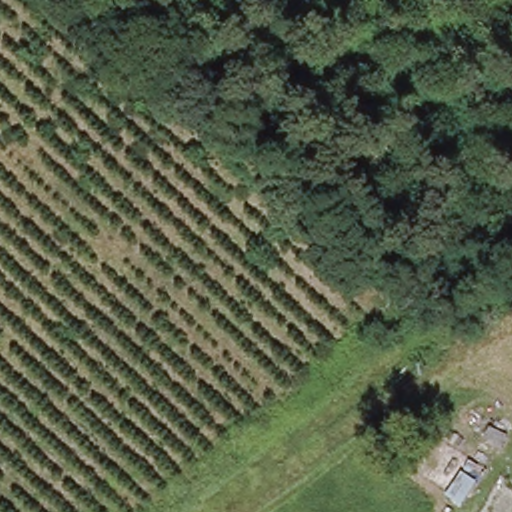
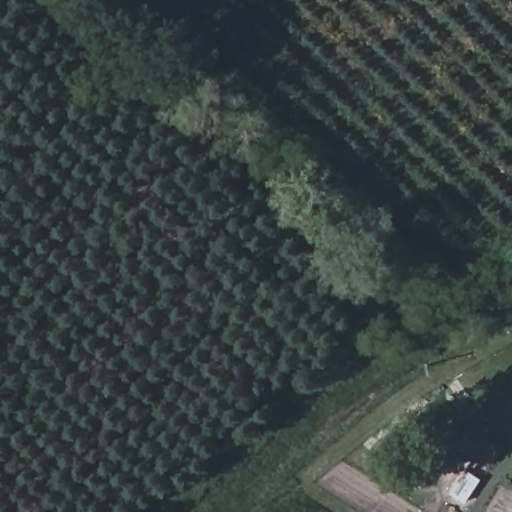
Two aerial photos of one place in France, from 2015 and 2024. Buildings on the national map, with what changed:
unchanged [(489,472),(464,505),(447,491),(470,460),(489,472)]

